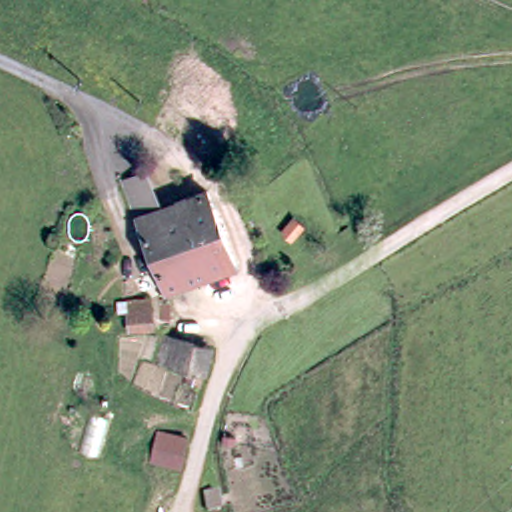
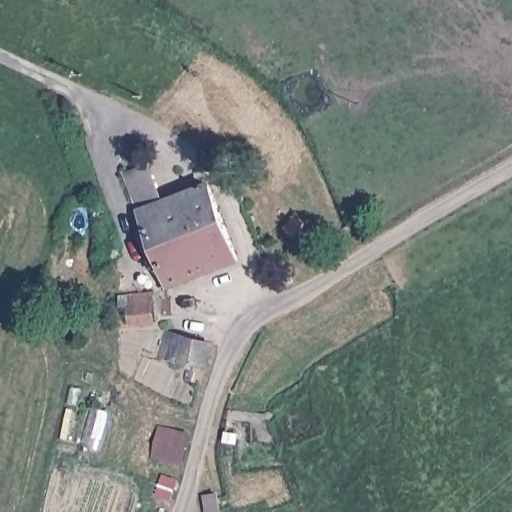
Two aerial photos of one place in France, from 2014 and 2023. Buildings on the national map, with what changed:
unchanged [(133,176),(148,171),(151,179),(160,204),(216,184),(245,259),(213,271),(186,280),(174,284),(166,263),(146,211),(136,184),(133,176)]
unchanged [(157,300),(160,321),(136,324),(131,304),(157,300)]
unchanged [(196,383),(199,369),(171,362),(178,336),(223,349),(216,374),(213,373),(209,387),(196,383)]
unchanged [(164,430),(195,436),(188,468),(157,460),(164,430)]

